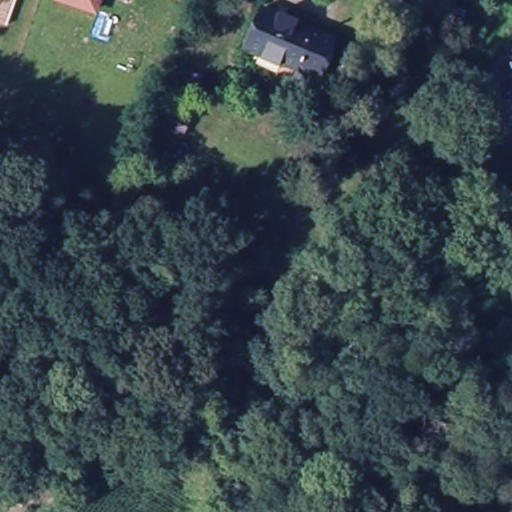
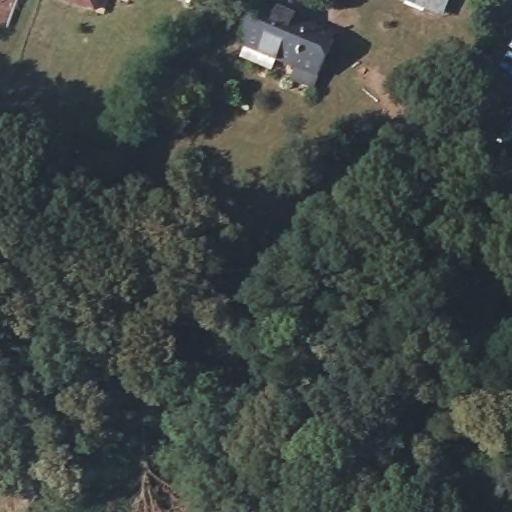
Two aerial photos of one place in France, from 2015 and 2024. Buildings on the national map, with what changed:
unchanged [(89,13),(55,0),(95,0),(89,13)]
unchanged [(394,0),(451,0),(442,19),(394,0)]
unchanged [(299,82),(304,67),(305,64),(249,39),(264,4),(337,36),(320,73),(313,88),(299,82)]

